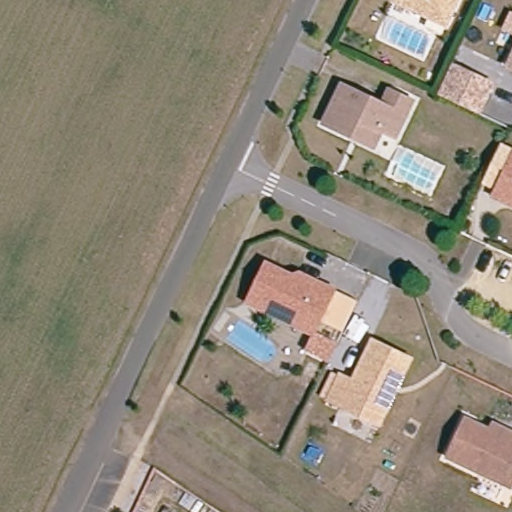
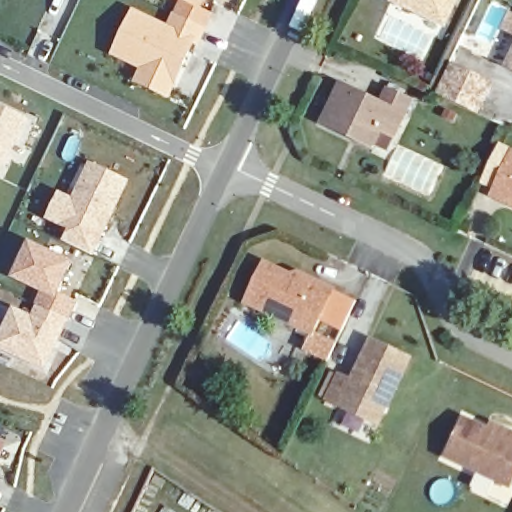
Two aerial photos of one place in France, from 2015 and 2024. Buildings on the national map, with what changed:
new [(134,84),(141,68),(114,56),(136,8),(169,25),(179,0),(207,0),(203,8),(215,14),(204,42),(199,40),(172,99),(134,84)]
unchanged [(392,11),(397,0),(463,0),(452,23),(445,37),(392,11)]
unchanged [(456,65),(492,83),(478,111),(442,93),(456,65)]
unchanged [(511,67),(512,66),(512,68),(511,67)]
unchanged [(360,139),(330,126),(348,86),(388,104),(394,89),(419,100),(412,116),(402,139),(389,133),(384,144),(381,149),(360,139)]
new [(6,167),(0,163),(0,104),(30,119),(6,167)]
new [(69,231),(45,220),(63,193),(74,197),(91,162),(131,182),(94,256),(65,242),(69,231)]
unchanged [(498,194),(512,165),(512,201),(498,194)]
new [(38,304),(43,292),(14,278),(31,243),(78,263),(61,295),(80,302),(71,321),(38,304)]
unchanged [(314,317),(307,331),(242,300),(261,260),(288,273),(295,271),(299,273),(314,280),(350,297),(351,297),(337,328),(314,317)]
new [(33,315),(38,304),(69,320),(46,371),(0,351),(0,335),(13,306),(33,315)]
unchanged [(342,375),(348,378),(349,376),(362,382),(381,341),(419,359),(389,425),(337,402),(338,400),(331,398),(342,375)]
unchanged [(452,457),(471,418),(494,429),(497,423),(512,431),(512,486),(452,457)]
new [(0,463),(0,442),(8,445),(0,463)]

